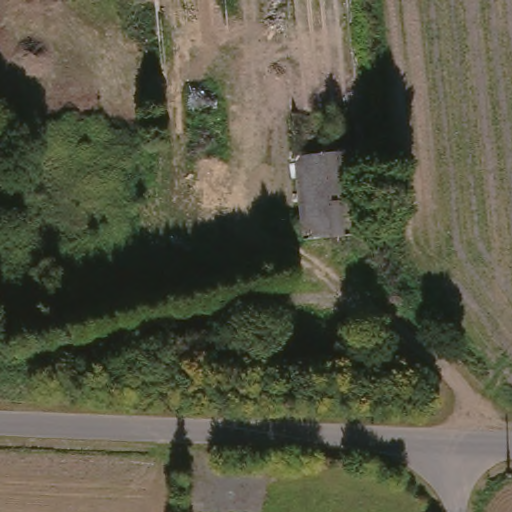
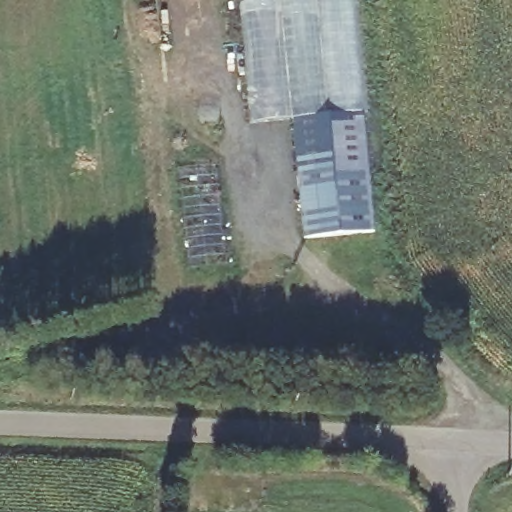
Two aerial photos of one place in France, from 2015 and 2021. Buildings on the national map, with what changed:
new [(352,0),(364,115),(293,120),(292,120),(253,125),(242,5),(282,0),(352,0)]
new [(292,120),(293,120),(364,115),(372,218),(350,219),(344,152),(296,156),(292,120)]
unchanged [(303,236),(296,156),(344,152),(351,233),(303,236)]

